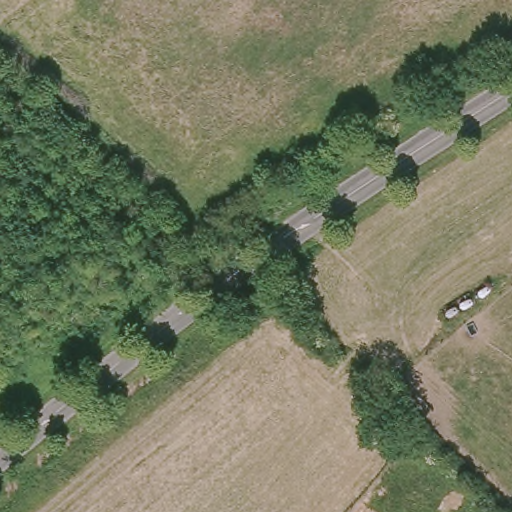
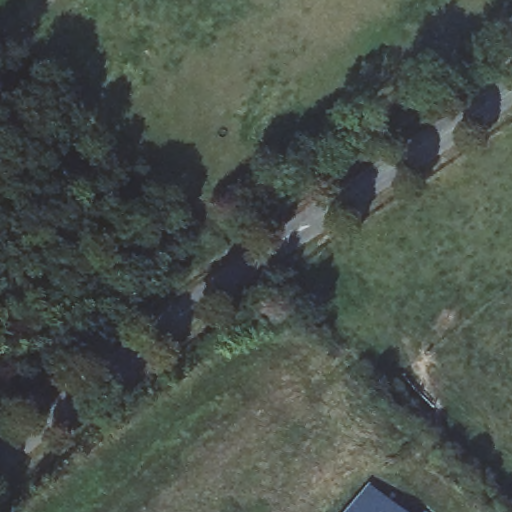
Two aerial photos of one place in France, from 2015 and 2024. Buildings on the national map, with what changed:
new [(345,512),(366,486),(396,512),(345,512)]

